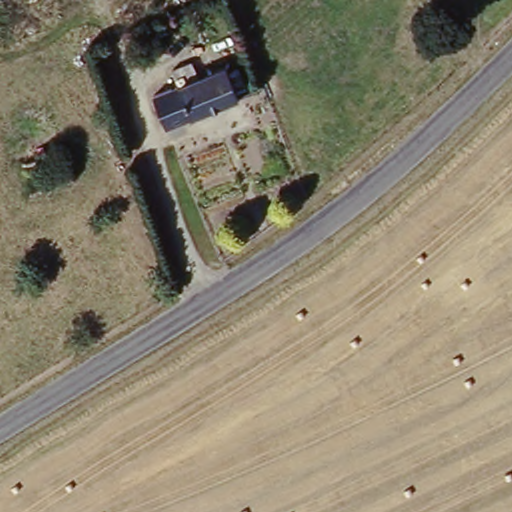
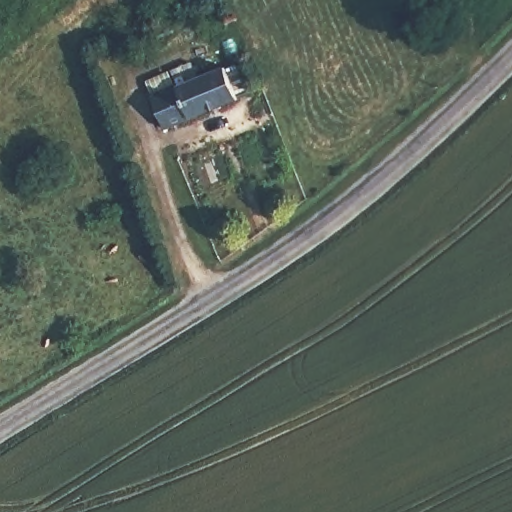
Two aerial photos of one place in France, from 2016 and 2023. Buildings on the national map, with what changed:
unchanged [(155,98),(183,85),(179,70),(200,63),(207,78),(233,68),(246,101),(168,133),(155,98)]

